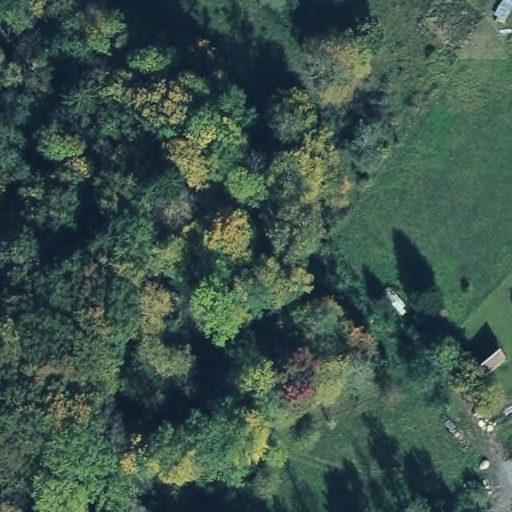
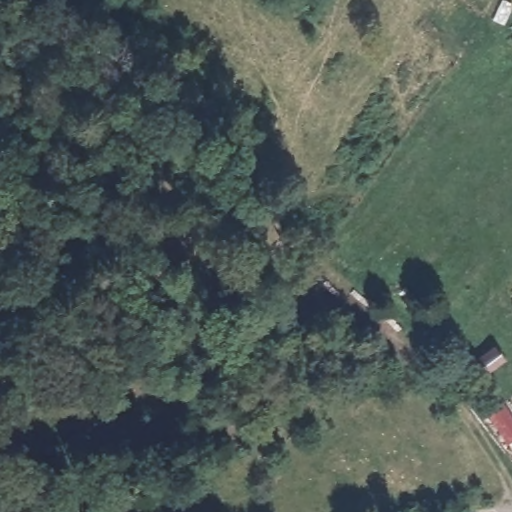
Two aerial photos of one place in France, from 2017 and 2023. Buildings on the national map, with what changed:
unchanged [(469,362),(483,352),(489,347),(499,361),(493,366),(481,376),(469,362)]

